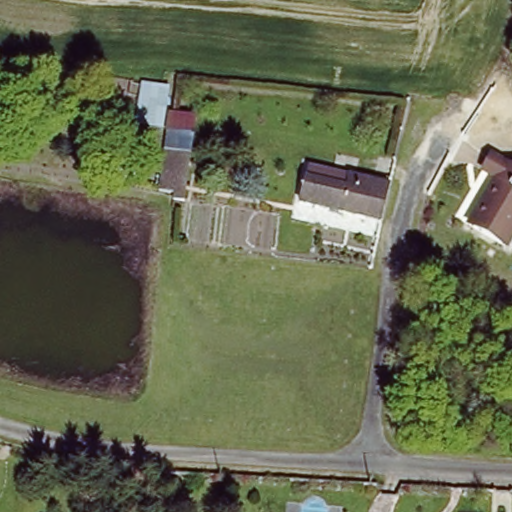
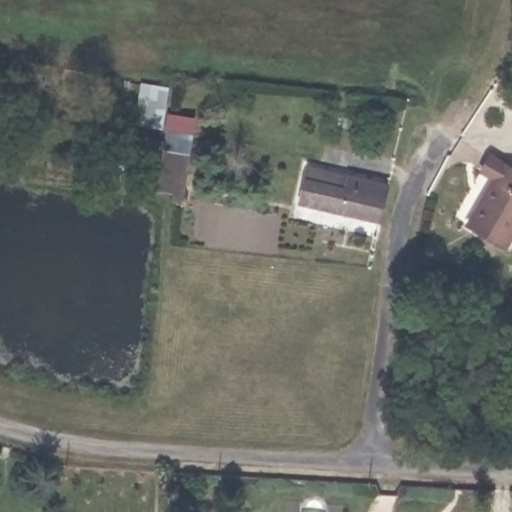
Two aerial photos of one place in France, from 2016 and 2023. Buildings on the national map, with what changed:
unchanged [(166,198),(168,190),(153,189),(159,147),(163,128),(133,124),(139,79),(168,85),(164,110),(194,116),(189,152),(185,150),(179,200),(166,198)]
unchanged [(499,240),(467,222),(492,179),(478,170),(487,153),(512,168),(512,225),(503,242),(499,240)]
unchanged [(387,182),(379,222),(297,205),(305,161),(387,182)]

